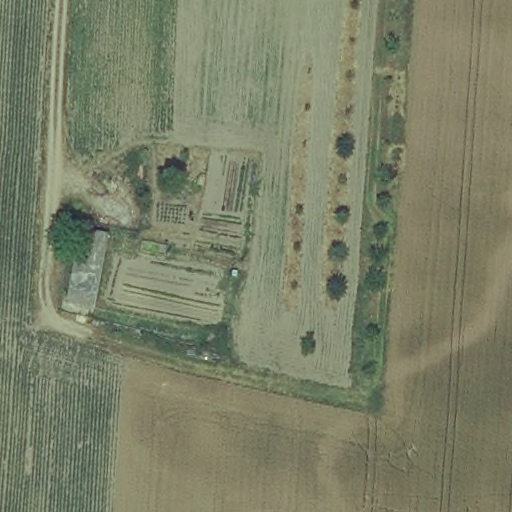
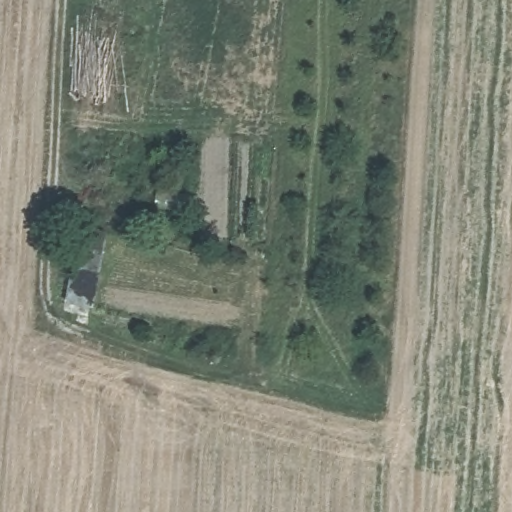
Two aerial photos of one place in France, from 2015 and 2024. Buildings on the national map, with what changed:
unchanged [(93,309),(65,303),(80,229),(109,236),(93,309)]

